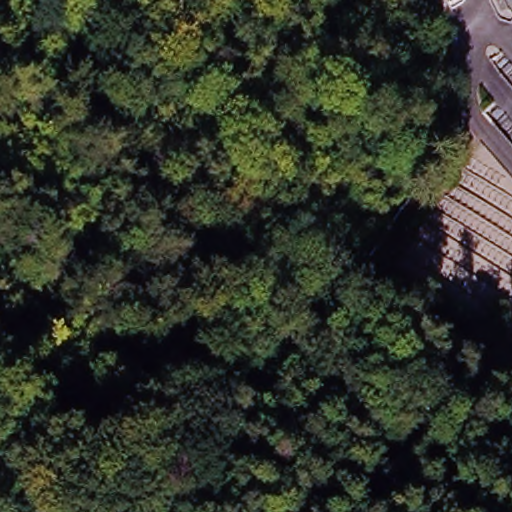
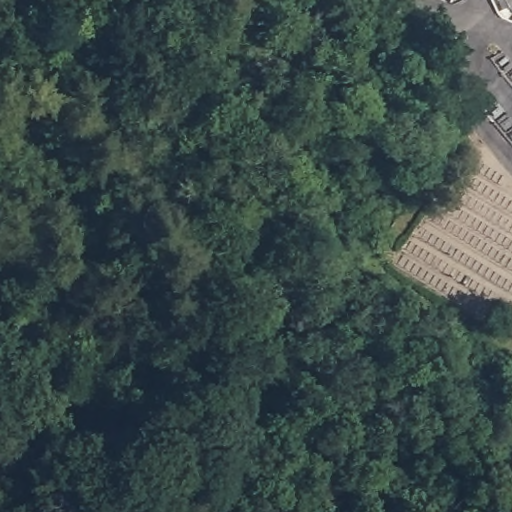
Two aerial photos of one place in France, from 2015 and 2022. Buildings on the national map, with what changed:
[]

